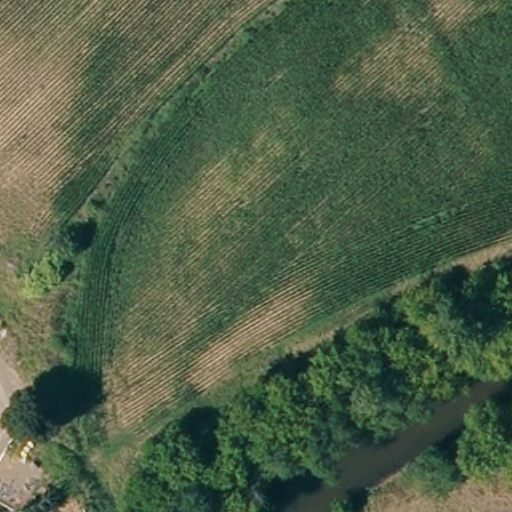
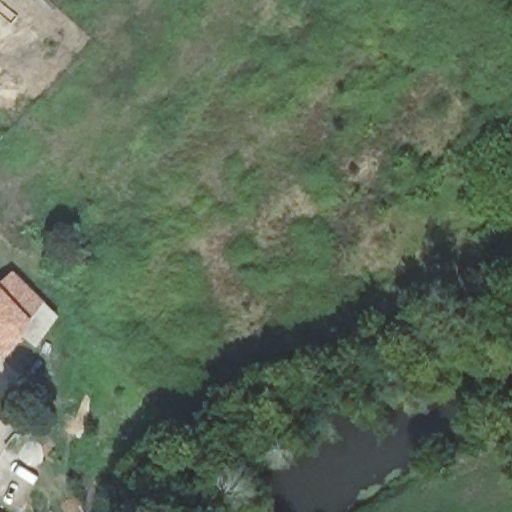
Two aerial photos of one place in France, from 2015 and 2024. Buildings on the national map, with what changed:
new [(15,270),(63,317),(41,346),(29,333),(10,356),(0,345),(0,282),(1,283),(15,270)]

